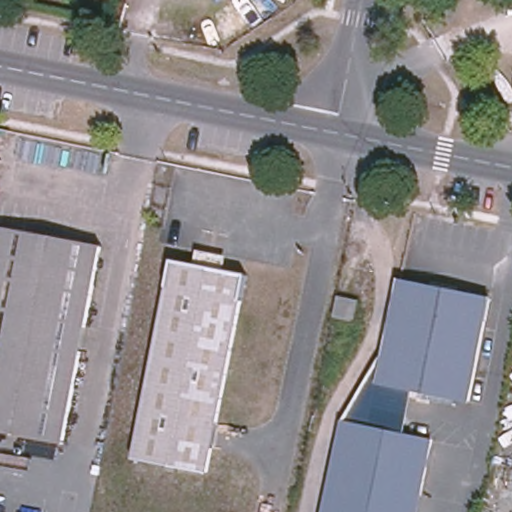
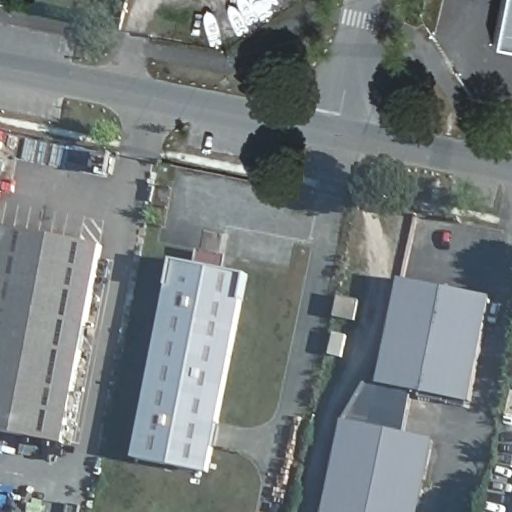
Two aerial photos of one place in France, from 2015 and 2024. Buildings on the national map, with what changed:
new [(500,0),(512,0),(512,49),(491,45),(500,0)]
unchanged [(0,431),(0,272),(8,227),(107,245),(69,444),(0,431)]
unchanged [(208,477),(134,463),(168,292),(173,266),(247,280),(241,307),(208,477)]
unchanged [(470,402),(412,391),(405,433),(342,421),(385,352),(400,280),(491,298),(470,402)]
unchanged [(355,322),(334,318),(338,296),(359,300),(355,322)]
unchanged [(324,512),(342,421),(405,433),(434,440),(419,512),(324,512)]

